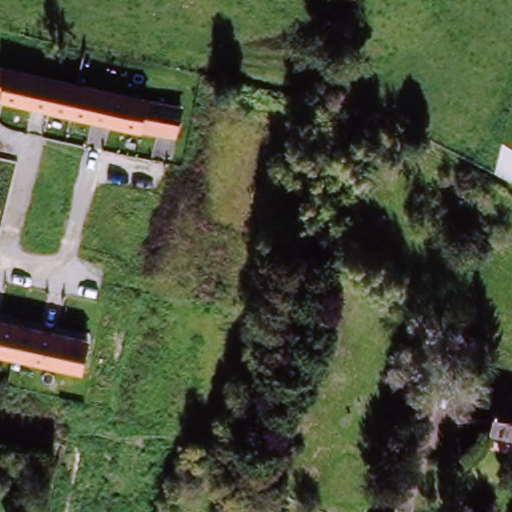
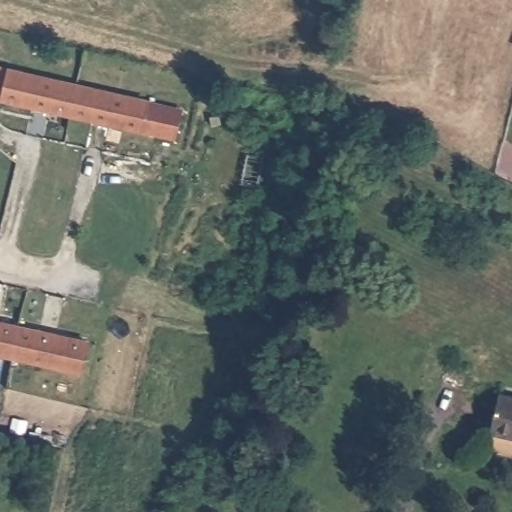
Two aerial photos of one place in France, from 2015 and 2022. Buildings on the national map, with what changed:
unchanged [(183,108),(177,141),(142,132),(0,101),(0,65),(7,66),(149,99),(183,108)]
unchanged [(82,374),(0,356),(0,320),(89,340),(82,374)]
unchanged [(492,438),(500,402),(512,405),(512,443),(492,438)]

